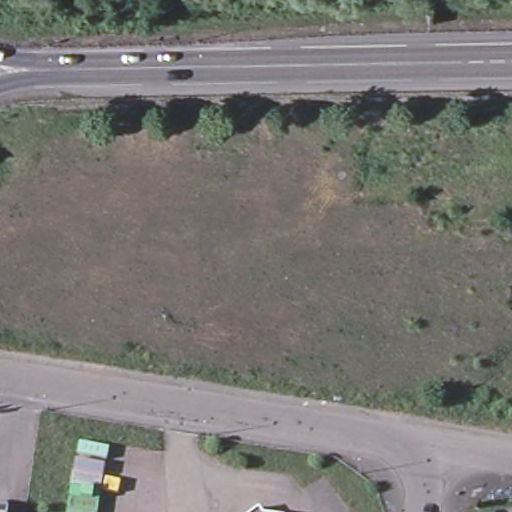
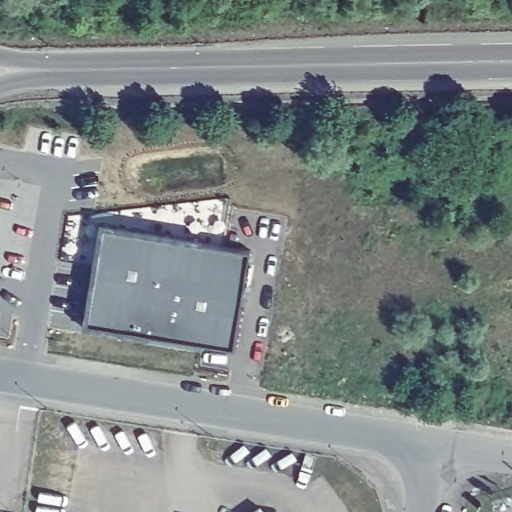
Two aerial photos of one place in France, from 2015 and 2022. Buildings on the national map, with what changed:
new [(240,351),(154,336),(154,339),(89,328),(105,224),(207,241),(207,243),(109,227),(256,252),(240,351)]
unchanged [(8,512),(0,512),(0,508),(9,509),(8,512)]
unchanged [(255,512),(260,508),(262,512),(255,512)]

